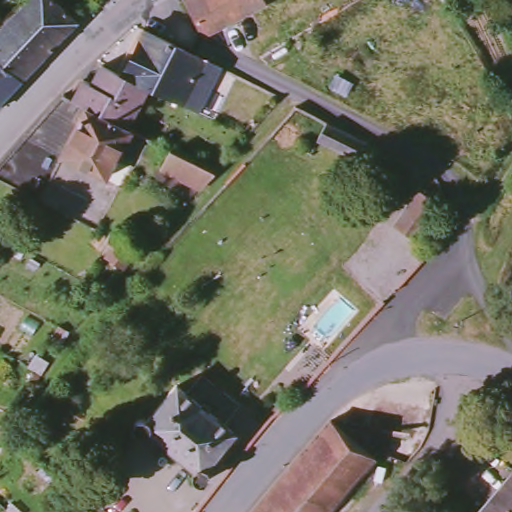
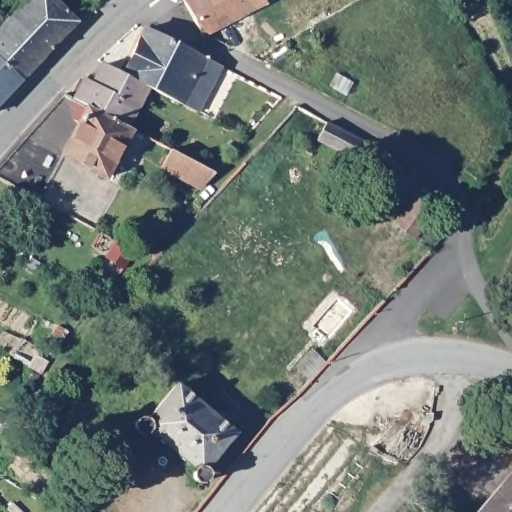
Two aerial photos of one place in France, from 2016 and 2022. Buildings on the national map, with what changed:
unchanged [(42,0),(60,0),(72,12),(76,8),(91,23),(32,83),(0,55),(0,46),(15,29),(42,0)]
unchanged [(270,5),(207,37),(188,1),(191,0),(268,0),(270,5)]
unchanged [(0,46),(0,15),(15,29),(0,46)]
unchanged [(128,74),(150,29),(211,60),(227,68),(220,82),(203,112),(188,105),(187,107),(152,89),(127,77),(128,74)]
unchanged [(0,119),(0,55),(32,83),(0,119)]
unchanged [(298,64),(290,73),(285,69),(293,60),(298,64)]
unchanged [(141,108),(97,84),(106,67),(127,77),(152,89),(141,108)]
unchanged [(131,127),(78,100),(90,80),(97,84),(141,108),(131,127)]
unchanged [(162,152),(147,145),(101,230),(101,231),(0,177),(0,173),(69,95),(78,100),(131,127),(165,145),(162,152)]
unchanged [(398,157),(389,176),(323,144),(333,124),(398,157)]
unchanged [(218,172),(221,174),(206,189),(167,168),(177,151),(218,172)]
unchanged [(424,247),(413,240),(395,228),(410,207),(420,194),(437,207),(446,214),(424,247)]
unchanged [(239,434),(210,469),(212,474),(212,480),(209,483),(204,485),(198,484),(195,480),(193,474),(195,470),(155,435),(149,438),(144,438),(138,435),(136,431),(137,425),(140,421),(145,418),(151,419),(181,385),(239,434)]
demolished [(261,512),(331,428),(376,467),(338,512),(261,512)]
unchanged [(486,512),(512,482),(512,512),(486,512)]

